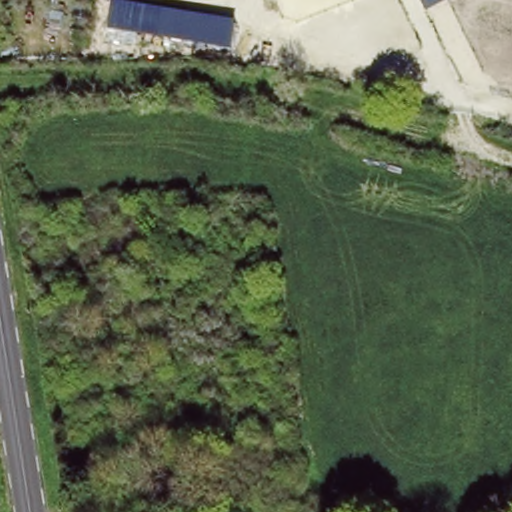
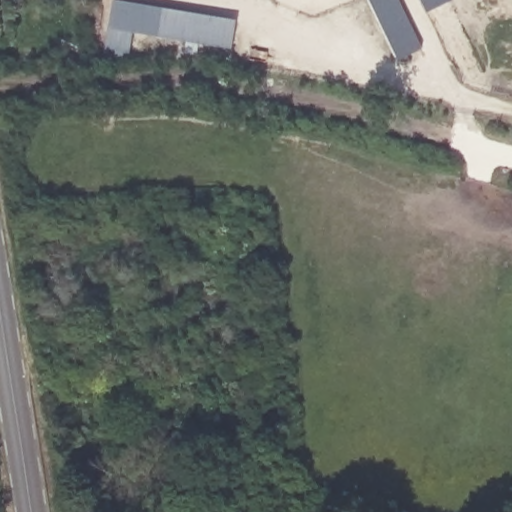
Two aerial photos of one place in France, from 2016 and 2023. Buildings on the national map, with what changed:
unchanged [(108,29),(113,0),(116,0),(236,19),(232,49),(108,29)]
new [(401,63),(370,0),(397,0),(422,52),(401,63)]
new [(421,0),(451,0),(428,13),(421,0)]

